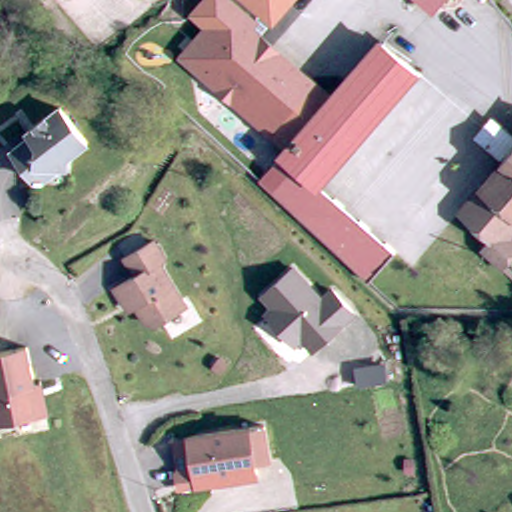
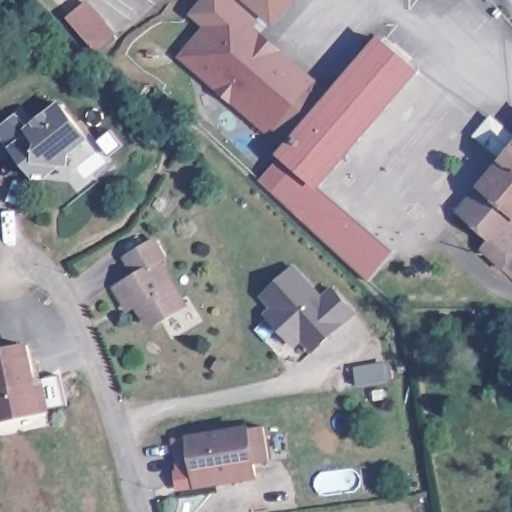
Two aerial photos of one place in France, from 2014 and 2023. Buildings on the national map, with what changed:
unchanged [(257,19),(258,20),(253,25),(290,57),(315,78),(312,82),(281,119),(273,128),(272,129),(271,129),(262,121),(185,55),(232,0),(235,0),(257,19)]
unchanged [(272,23),(245,0),(293,0),(272,23)]
demolished [(437,8),(427,0),(443,0),(437,8)]
new [(92,5),(117,35),(98,51),(72,21),(92,5)]
unchanged [(280,153),(304,124),(312,114),(325,100),(378,37),(393,49),(414,67),(410,71),(381,106),(373,116),(359,132),(316,183),(281,153),(280,153)]
unchanged [(30,164),(28,164),(11,142),(30,128),(27,124),(33,119),(58,99),(86,132),(68,147),(67,160),(63,160),(42,178),(30,164)]
unchanged [(508,245),(495,259),(475,241),(485,230),(455,204),(498,155),(472,130),(489,112),(512,132),(512,217),(503,227),(512,236),(512,241),(508,245)]
unchanged [(259,179),(281,153),(316,183),(393,250),(365,280),(358,273),(335,251),(259,179)]
unchanged [(122,301),(112,286),(133,273),(122,256),(150,237),(162,256),(157,259),(185,302),(154,323),(148,323),(135,303),(127,308),(122,301)]
unchanged [(358,311),(315,353),(303,342),(293,351),(258,313),(267,305),(258,296),(295,263),(322,293),(330,284),(358,311)]
unchanged [(30,413),(0,420),(0,352),(25,346),(32,381),(38,380),(45,410),(30,413)]
unchanged [(185,433),(243,423),(258,421),(264,455),(249,458),(251,470),(214,476),(192,480),(190,472),(185,433)]

